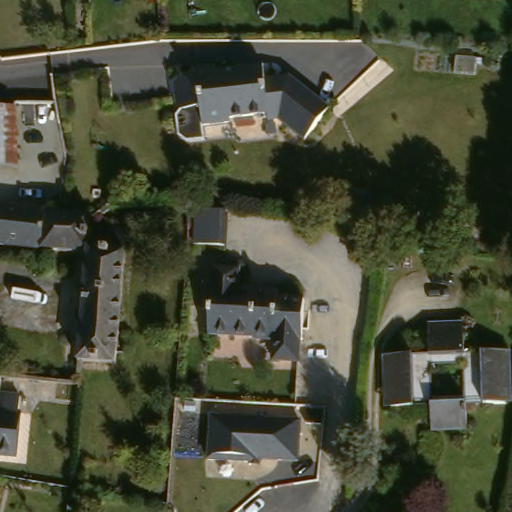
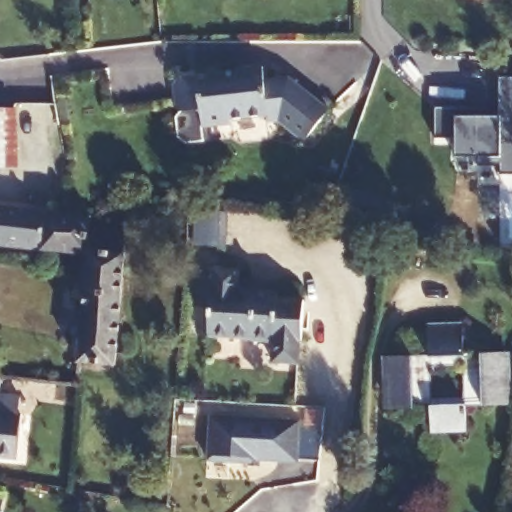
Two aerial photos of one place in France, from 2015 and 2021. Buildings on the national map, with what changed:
unchanged [(263,85),(288,82),(327,117),(302,147),(277,125),(268,126),(267,120),(229,125),(229,129),(202,134),(199,117),(180,120),(175,116),(172,92),(175,87),(195,84),(195,82),(262,73),(263,85)]
new [(501,175),(502,164),(479,164),(478,157),(457,157),(457,138),(436,138),(435,107),(482,107),(482,117),(500,117),(500,77),(512,77),(512,174),(501,175)]
unchanged [(17,167),(0,168),(0,108),(17,109),(17,167)]
unchanged [(427,219),(421,238),(343,215),(351,191),(427,219)]
unchanged [(0,250),(0,212),(45,217),(40,254),(0,250)]
unchanged [(45,217),(57,218),(64,218),(91,221),(90,224),(90,233),(87,259),(40,254),(45,217)]
unchanged [(223,221),(220,254),(189,251),(193,218),(223,221)]
unchanged [(127,237),(114,370),(79,367),(87,259),(90,233),(127,237)]
unchanged [(235,273),(234,293),(273,297),(273,300),(300,304),(296,366),(270,365),(272,343),(204,336),(209,271),(235,273)]
unchanged [(462,330),(463,360),(501,359),(502,412),(463,413),(463,433),(429,434),(427,412),(390,413),(388,361),(428,360),(427,330),(462,330)]
unchanged [(17,420),(21,421),(16,462),(0,460),(0,400),(19,402),(17,420)]
unchanged [(300,467),(259,464),(258,471),(207,467),(209,420),(302,423),(300,467)]

